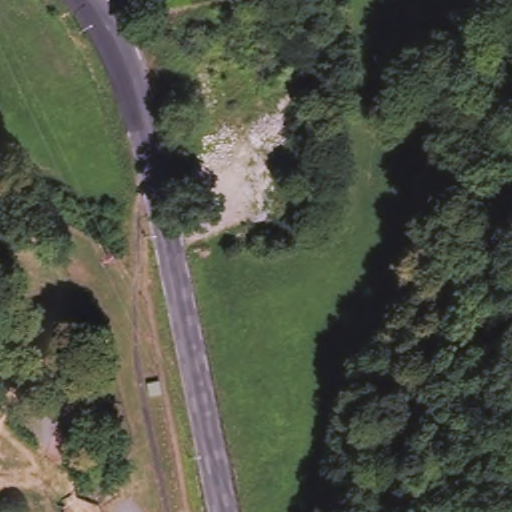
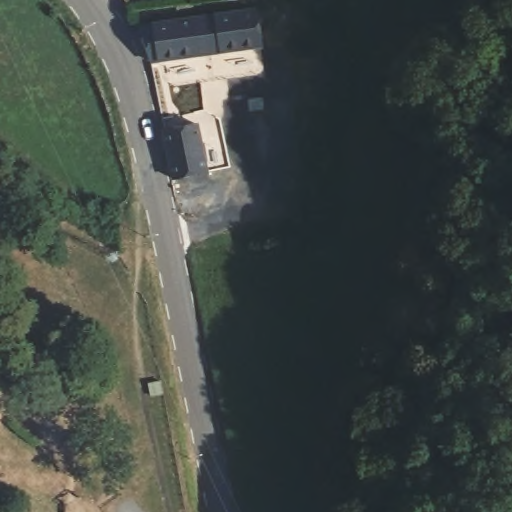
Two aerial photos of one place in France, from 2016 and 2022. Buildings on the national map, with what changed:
new [(139,25),(258,11),(263,47),(150,63),(139,25)]
new [(200,124),(209,173),(172,180),(163,132),(200,124)]
new [(169,383),(156,385),(155,372),(167,370),(169,383)]

